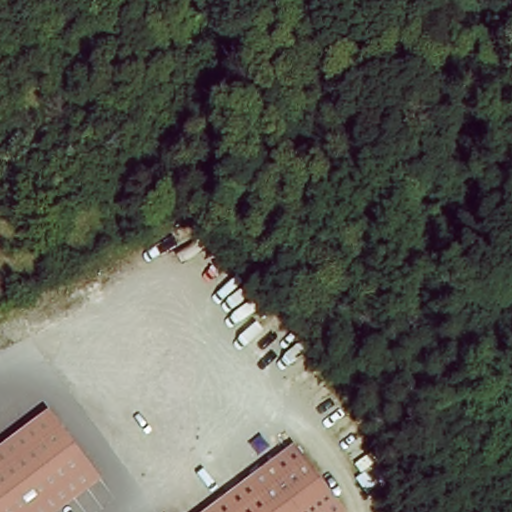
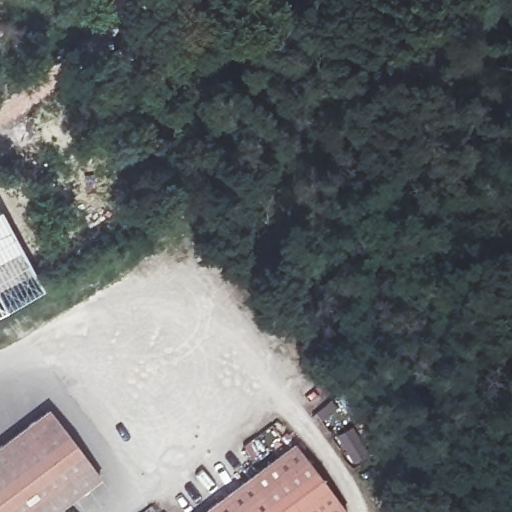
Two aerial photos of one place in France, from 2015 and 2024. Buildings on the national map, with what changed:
new [(0,313),(0,211),(43,290),(0,313)]
unchanged [(104,480),(59,512),(0,512),(0,448),(52,410),(104,480)]
unchanged [(295,448),(341,512),(208,512),(295,448)]

